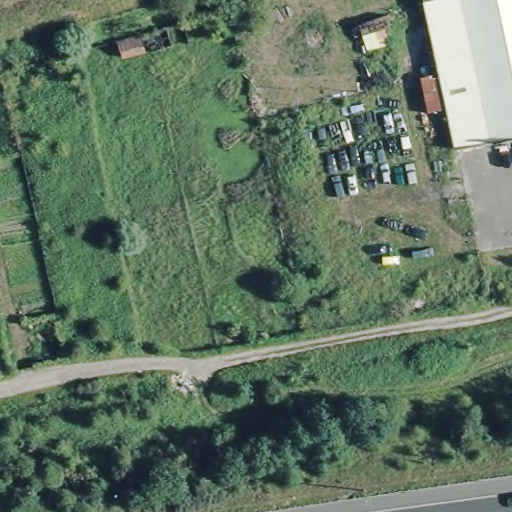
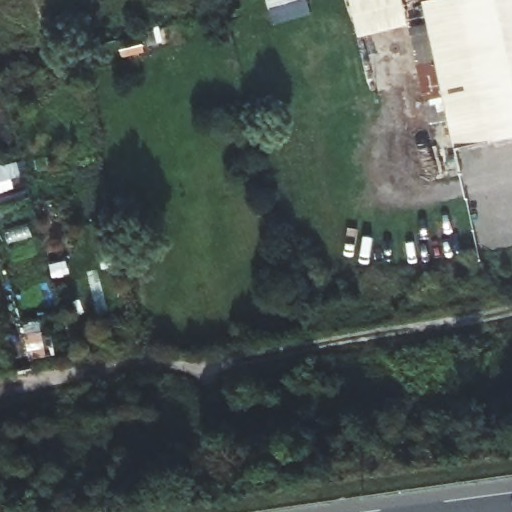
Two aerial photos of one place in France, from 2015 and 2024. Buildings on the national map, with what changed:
new [(358,37),(349,0),(402,0),(407,25),(358,37)]
unchanged [(512,60),(512,132),(453,144),(425,0),(498,0),(503,20),(512,60)]
unchanged [(498,0),(512,0),(512,60),(503,20),(498,0)]
unchanged [(163,27),(166,46),(119,57),(115,39),(163,27)]

